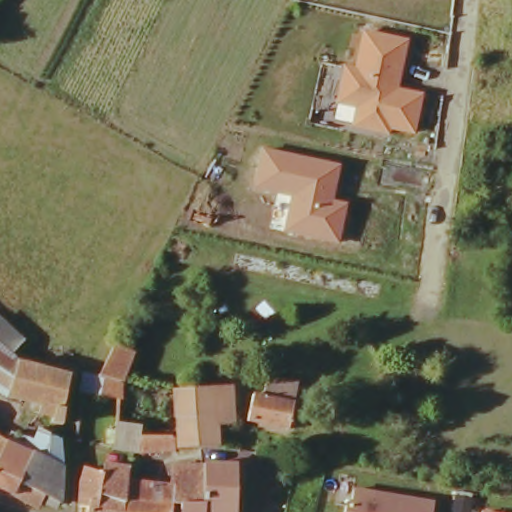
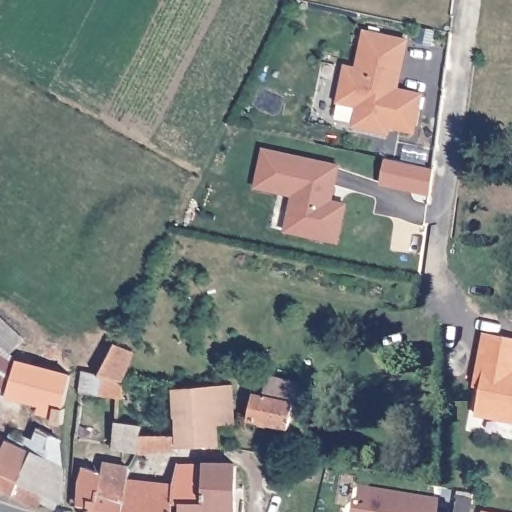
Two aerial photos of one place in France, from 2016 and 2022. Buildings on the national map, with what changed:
unchanged [(355,107),(333,102),(341,65),(354,67),(362,29),(407,40),(396,89),(422,93),(414,134),(389,128),(388,136),(350,126),(355,107)]
unchanged [(341,165),(335,200),(348,202),(339,244),(283,233),(291,195),(254,190),(262,148),(341,165)]
new [(384,171),(434,182),(431,206),(379,196),(384,171)]
unchanged [(3,355),(0,352),(0,326),(16,338),(3,355)]
new [(474,415),(480,389),(473,386),(483,333),(512,338),(512,423),(474,415)]
unchanged [(82,391),(85,376),(87,367),(98,372),(113,343),(114,342),(135,354),(122,382),(117,400),(82,391)]
unchanged [(71,383),(62,416),(66,419),(65,433),(53,430),(54,424),(31,418),(32,413),(6,408),(0,404),(0,358),(16,373),(71,383)]
unchanged [(243,423),(248,389),(263,392),(266,374),(298,381),(293,400),(282,429),(243,423)]
unchanged [(227,403),(226,403),(226,421),(214,421),(215,446),(177,447),(173,390),(227,386),(228,387),(227,403)]
unchanged [(172,447),(136,448),(105,442),(112,422),(135,426),(136,436),(171,437),(172,447)]
unchanged [(0,437),(3,439),(8,430),(28,440),(25,448),(29,450),(39,430),(59,440),(57,465),(54,499),(34,490),(28,500),(8,491),(0,487),(0,437)]
unchanged [(175,459),(202,458),(200,497),(179,495),(173,495),(170,512),(109,512),(78,506),(79,475),(85,462),(100,466),(101,458),(129,461),(127,474),(172,479),(175,459)]
unchanged [(200,497),(202,458),(233,459),(232,495),(239,496),(238,512),(179,512),(179,495),(200,497)]
unchanged [(344,501),(349,503),(352,489),(433,501),(431,512),(342,512),(344,501)]
unchanged [(480,511),(488,512),(480,512),(480,511)]

